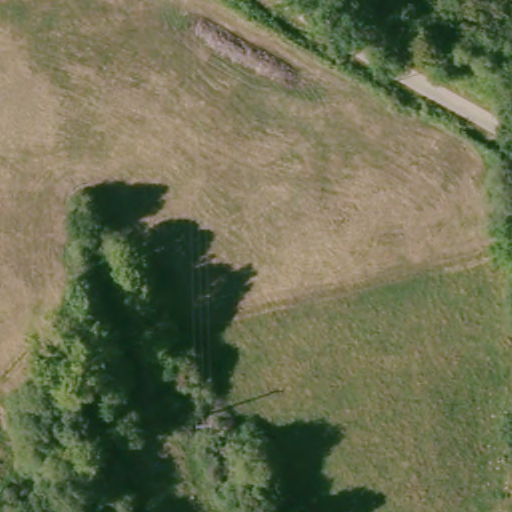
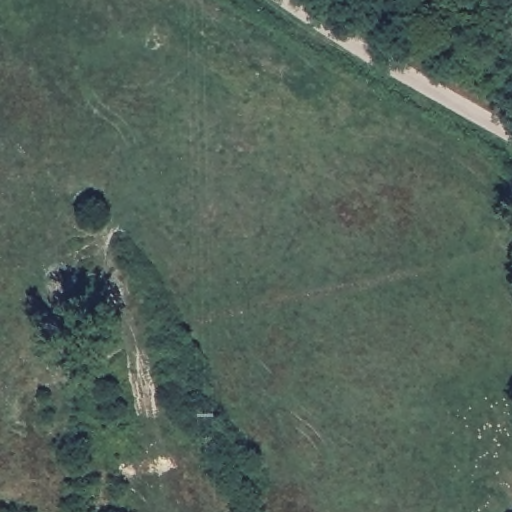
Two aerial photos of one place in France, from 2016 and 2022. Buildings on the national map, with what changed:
[]

